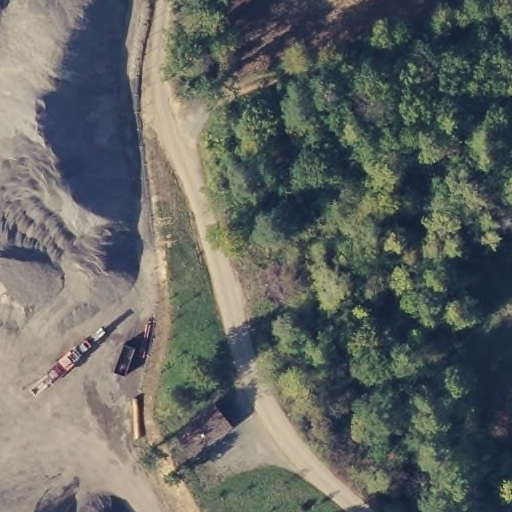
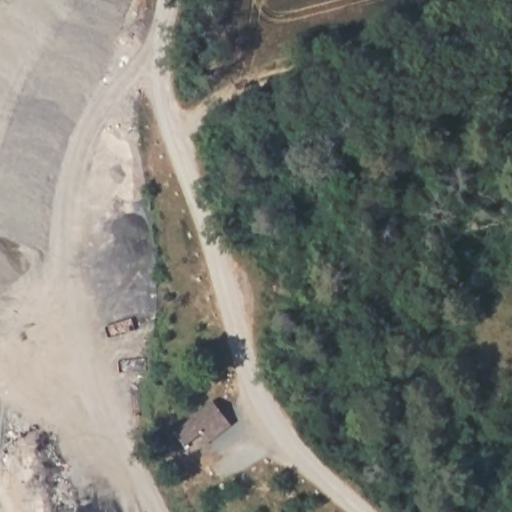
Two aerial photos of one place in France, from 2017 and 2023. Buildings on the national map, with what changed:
unchanged [(213,437),(209,432),(198,417),(217,403),(230,419),(233,424),(213,437)]

